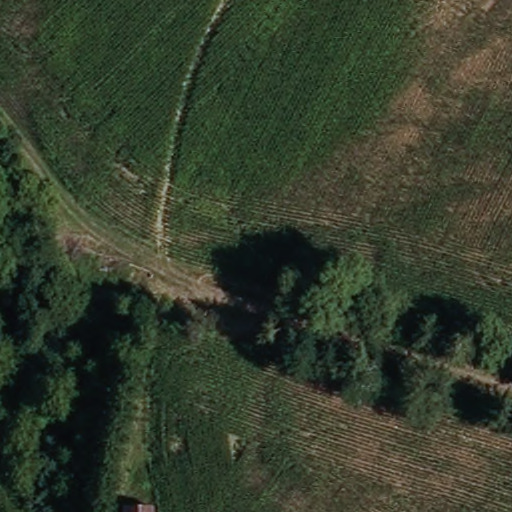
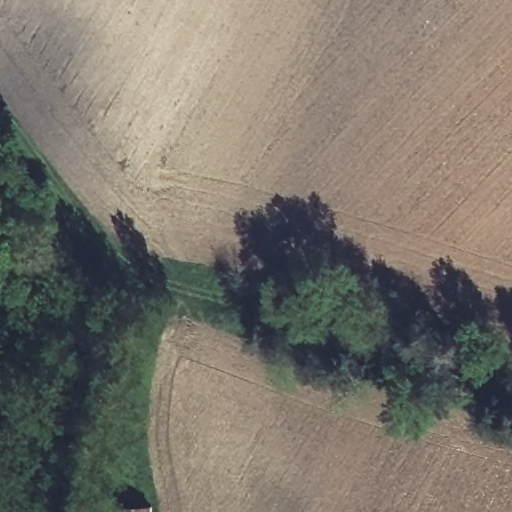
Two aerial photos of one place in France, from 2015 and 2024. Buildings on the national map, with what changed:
unchanged [(128,510),(156,510),(156,512),(128,512),(128,510)]

